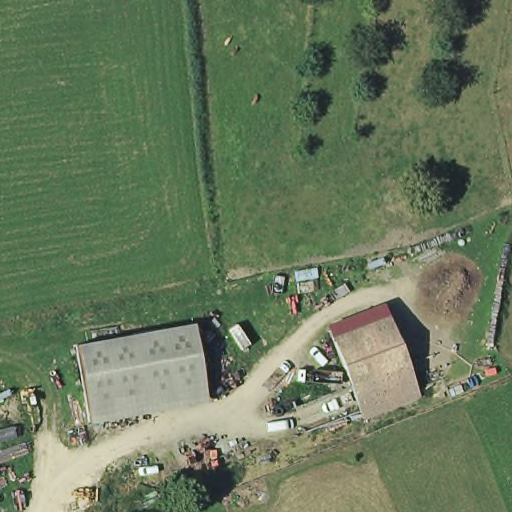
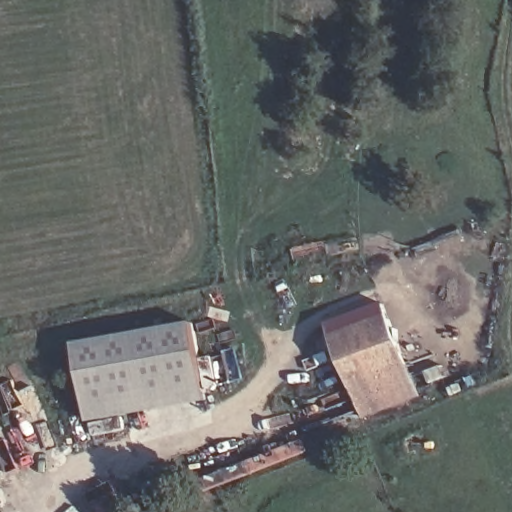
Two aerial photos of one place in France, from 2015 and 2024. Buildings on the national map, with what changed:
unchanged [(425,398),(368,422),(334,337),(392,315),(425,398)]
unchanged [(208,400),(91,422),(77,341),(192,322),(208,400)]

